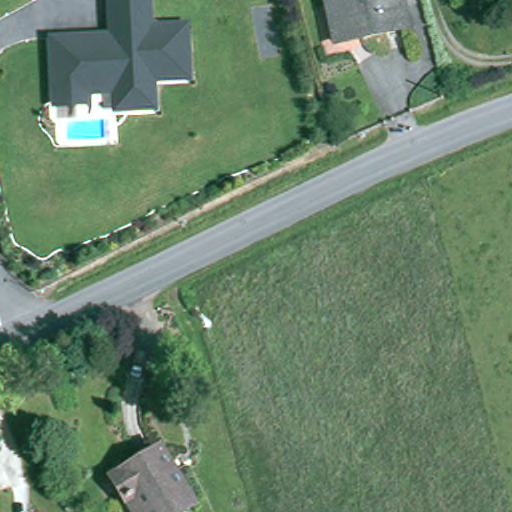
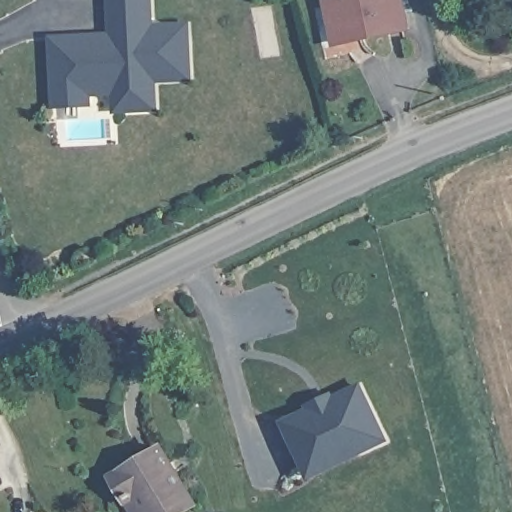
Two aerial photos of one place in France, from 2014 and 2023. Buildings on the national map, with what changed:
unchanged [(106,0),(151,0),(152,22),(188,21),(189,81),(155,84),(156,112),(112,114),(110,94),(90,95),(90,106),(51,108),(47,35),(107,31),(106,0)]
unchanged [(335,41),(327,0),(329,0),(402,0),(408,29),(362,39),(361,35),(335,41)]
new [(307,465),(287,425),(314,411),(312,408),(335,397),(337,401),(363,387),(390,442),(365,454),(313,478),(307,465)]
unchanged [(112,478),(160,448),(195,505),(183,512),(133,512),(127,501),(112,478)]

